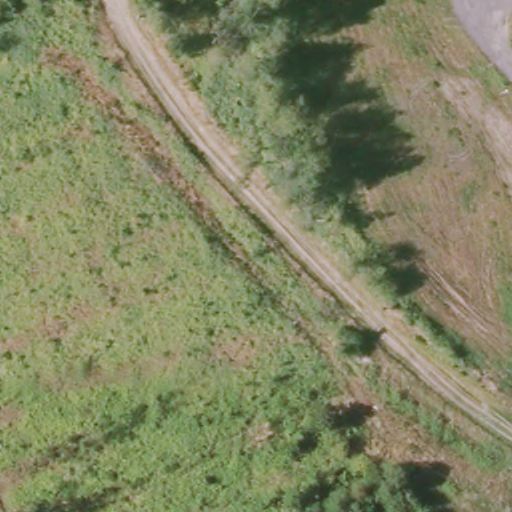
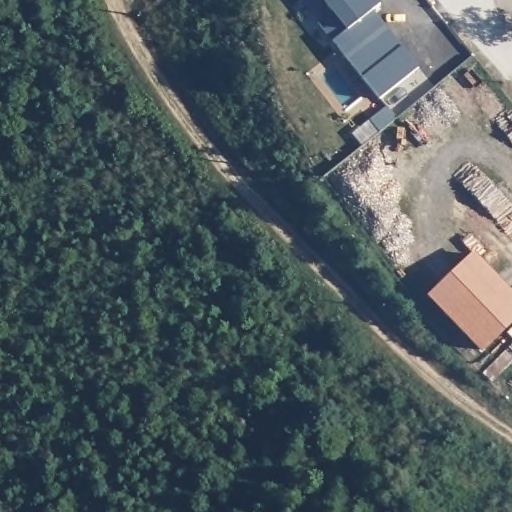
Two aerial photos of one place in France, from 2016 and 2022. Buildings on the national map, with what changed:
new [(322,0),(375,0),(379,4),(373,10),(417,67),(379,98),(333,42),(346,30),(322,0)]
new [(474,253),(512,293),(512,321),(481,352),(428,297),(474,253)]

